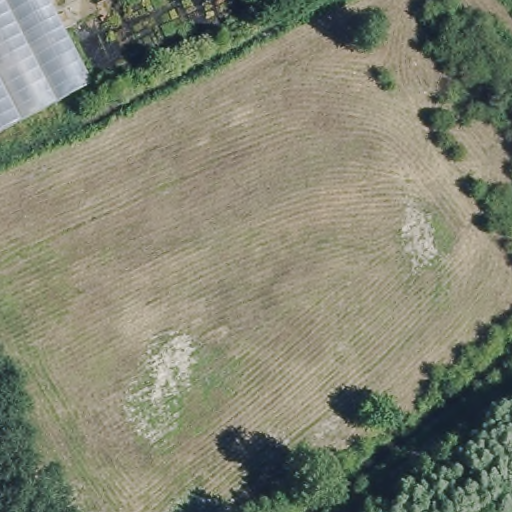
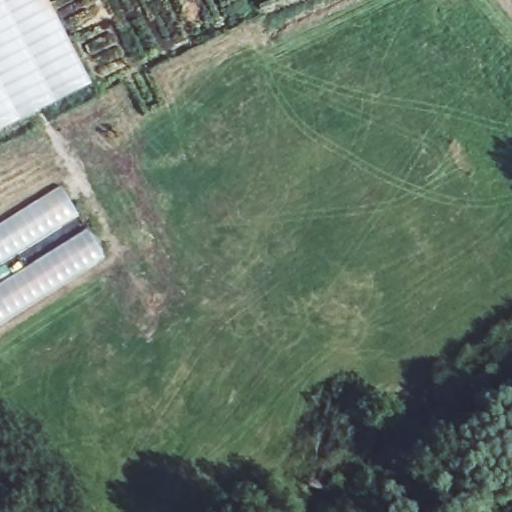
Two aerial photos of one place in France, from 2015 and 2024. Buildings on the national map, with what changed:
unchanged [(0,129),(0,0),(48,0),(90,82),(0,129)]
new [(78,216),(0,265),(0,225),(61,187),(78,216)]
new [(106,258),(0,326),(0,284),(87,230),(106,258)]

